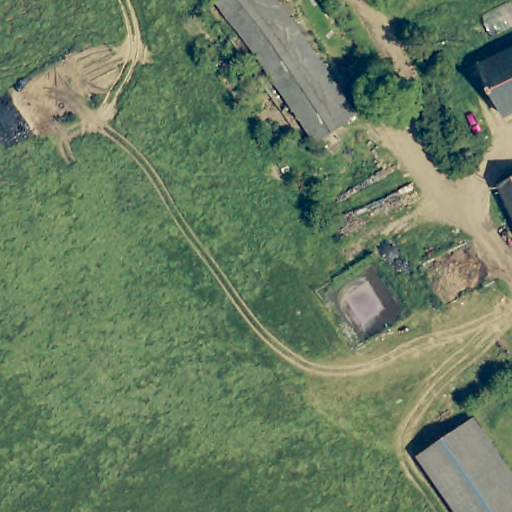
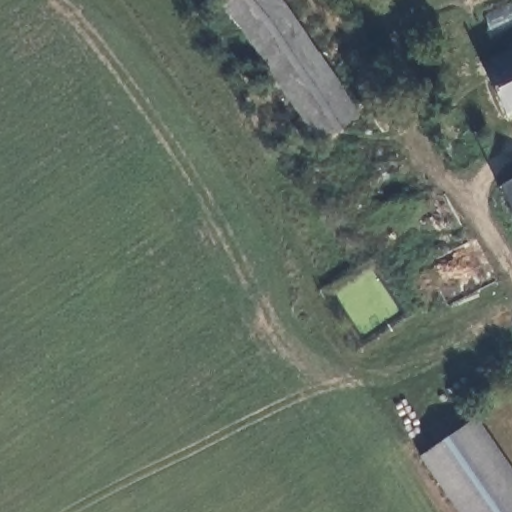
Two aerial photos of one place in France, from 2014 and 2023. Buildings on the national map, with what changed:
unchanged [(363,114),(323,143),(223,0),(283,0),(363,114)]
unchanged [(508,116),(482,65),(512,51),(512,115),(508,116)]
unchanged [(502,180),(512,176),(512,201),(502,180)]
unchanged [(458,512),(420,456),(471,421),(512,480),(512,512),(458,512)]

